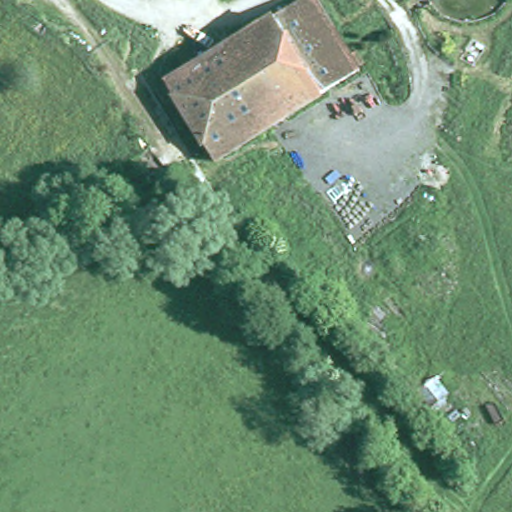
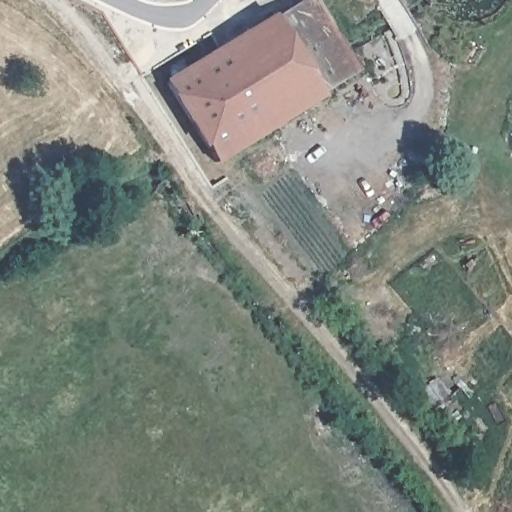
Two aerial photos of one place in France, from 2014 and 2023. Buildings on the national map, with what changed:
unchanged [(323,81),(327,86),(270,121),(255,130),(243,137),(217,153),(165,76),(292,0),(295,0),(340,70),(323,81)]

